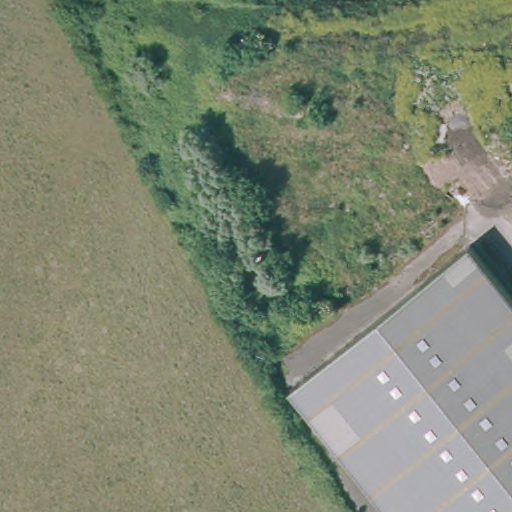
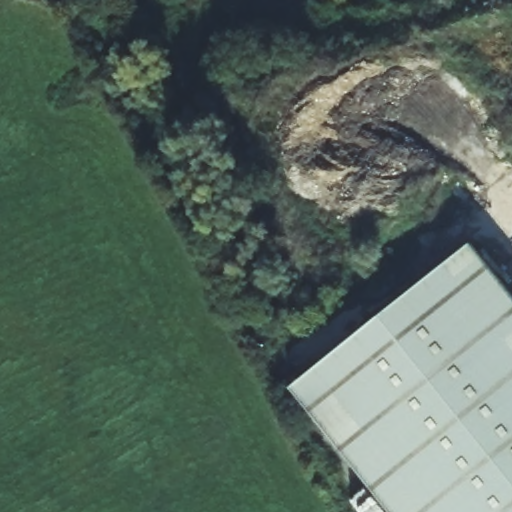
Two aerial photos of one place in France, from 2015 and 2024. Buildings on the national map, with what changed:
unchanged [(462,249),(512,311),(512,512),(385,512),(287,387),(462,249)]

